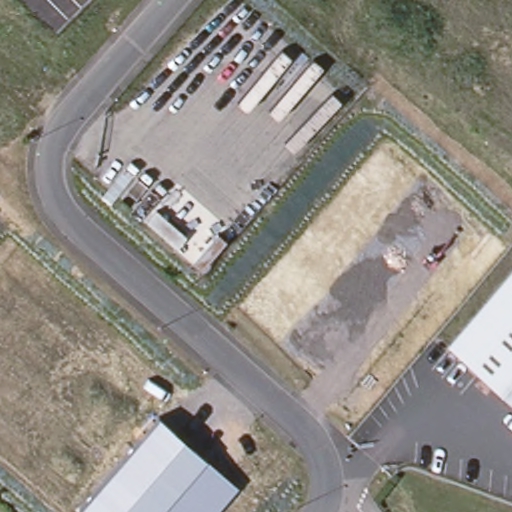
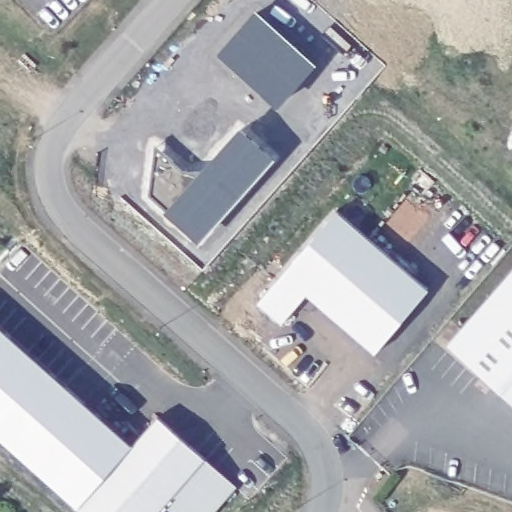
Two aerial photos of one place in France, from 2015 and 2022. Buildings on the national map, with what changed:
new [(222,52),(257,15),(310,64),(278,102),(222,52)]
new [(150,193),(156,145),(185,170),(205,169),(240,130),(270,156),(198,236),(150,193)]
new [(258,302),(337,213),(427,290),(373,351),(307,293),(282,323),(258,302)]
unchanged [(512,403),(446,344),(512,269),(512,403)]
new [(73,511),(0,444),(0,332),(129,448),(73,511)]
unchanged [(84,512),(78,507),(158,416),(205,458),(237,484),(213,512),(163,512),(160,509),(158,512),(84,512)]

